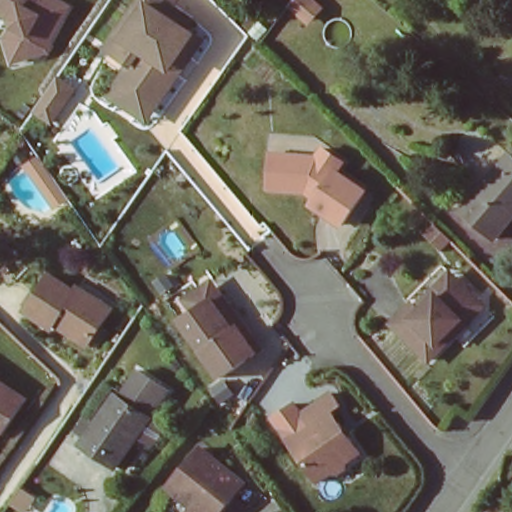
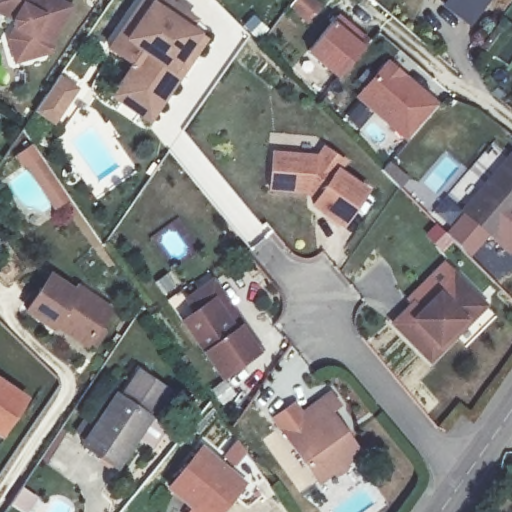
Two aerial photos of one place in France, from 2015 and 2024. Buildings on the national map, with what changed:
unchanged [(18,66),(5,45),(13,27),(0,18),(0,0),(61,0),(75,9),(58,53),(18,66)]
unchanged [(130,60),(107,44),(137,0),(164,0),(210,31),(150,119),(108,94),(130,60)]
new [(477,18),(452,0),(490,0),(477,18)]
new [(331,21),(339,13),(369,39),(361,47),(334,80),(304,53),(331,21)]
new [(385,60),(438,103),(406,141),(355,96),(385,60)]
new [(65,76),(86,89),(60,127),(37,115),(65,76)]
unchanged [(316,158),(323,150),(340,163),(337,172),(362,189),(340,222),(313,202),(321,191),(306,180),(274,180),(274,158),(316,158)]
unchanged [(506,153),(512,158),(512,218),(496,239),(461,212),(506,153)]
new [(39,160),(70,199),(58,209),(28,169),(39,160)]
unchanged [(93,325),(80,343),(60,329),(64,322),(50,313),(43,323),(25,311),(48,275),(68,288),(71,283),(98,301),(105,305),(93,325)]
unchanged [(483,302),(432,357),(392,320),(411,299),(422,309),(454,275),(483,302)]
unchanged [(213,292),(235,322),(239,319),(256,343),(222,368),(183,314),(213,292)]
unchanged [(0,437),(0,385),(24,401),(0,437)]
unchanged [(118,466),(80,442),(95,418),(113,390),(121,394),(151,413),(118,466)]
unchanged [(316,425),(307,413),(336,393),(346,408),(338,414),(364,452),(349,462),(352,467),(334,479),(331,475),(323,480),(295,440),(316,425)]
unchanged [(196,449),(241,484),(219,512),(185,512),(189,506),(165,488),(171,479),(196,449)]

